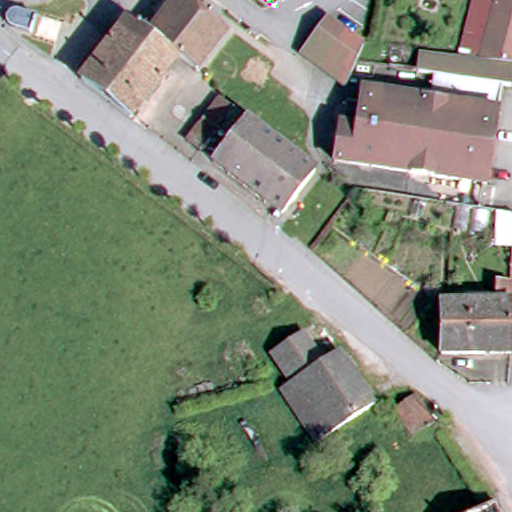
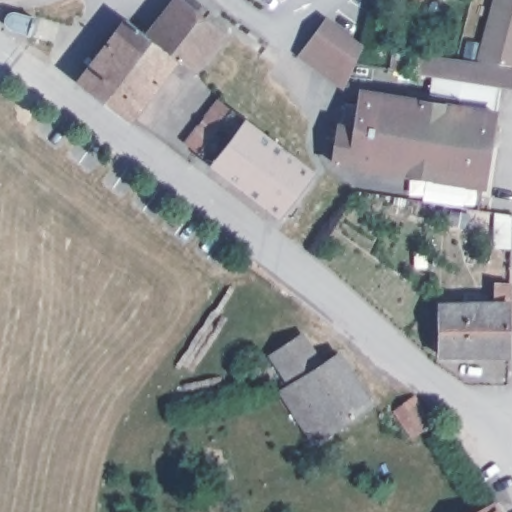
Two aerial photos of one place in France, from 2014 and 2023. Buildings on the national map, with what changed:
unchanged [(80,85),(126,25),(146,39),(177,1),(178,2),(180,0),(188,0),(208,14),(204,21),(207,24),(225,37),(200,69),(193,76),(177,64),(131,124),(80,85)]
unchanged [(512,65),(480,61),(495,3),(495,0),(512,0),(512,65)]
unchanged [(5,28),(1,21),(1,17),(6,12),(12,12),(30,18),(32,19),(25,35),(5,28)]
unchanged [(300,49),(310,36),(326,15),(363,43),(356,60),(345,85),(308,56),(300,49)]
unchanged [(512,78),(510,83),(500,82),(435,74),(417,72),(420,54),(480,61),(512,65),(512,78)]
unchanged [(487,183),(340,165),(342,129),(347,129),(349,108),(363,108),(364,94),(446,102),(447,89),(435,88),(435,74),(500,82),(487,183)]
unchanged [(280,216),(199,153),(187,144),(200,124),(220,101),(232,110),(269,137),(294,156),(295,155),(315,171),(280,216)]
unchanged [(442,301),(497,302),(497,285),(511,285),(510,355),(441,354),(442,301)]
unchanged [(373,401),(315,438),(280,386),(290,379),(272,350),(303,330),(322,359),(339,348),(373,401)]
unchanged [(395,406),(416,392),(435,421),(412,435),(395,406)]
unchanged [(498,512),(478,512),(494,504),(498,512)]

